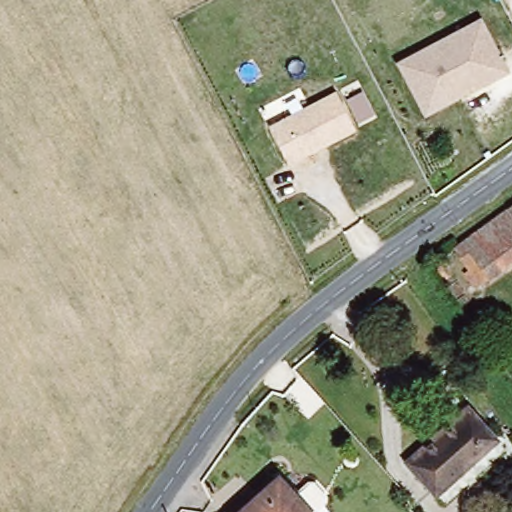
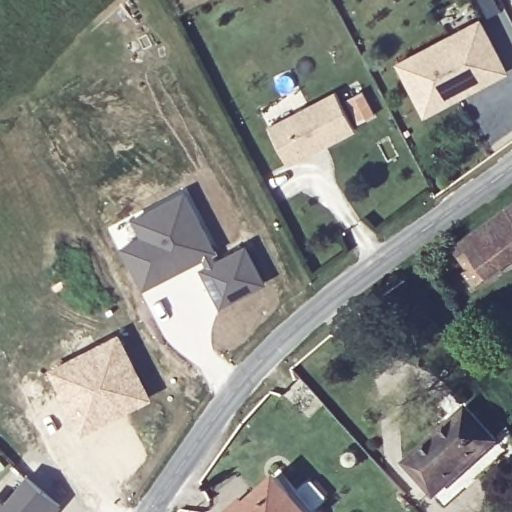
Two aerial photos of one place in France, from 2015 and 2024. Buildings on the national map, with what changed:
unchanged [(481,17),(510,73),(423,116),(395,60),(481,17)]
unchanged [(336,90),(357,130),(289,165),(269,124),(336,90)]
new [(136,236),(127,217),(186,186),(221,255),(207,262),(204,258),(144,289),(120,245),(136,236)]
unchanged [(512,207),(512,263),(478,287),(468,272),(473,269),(457,247),(512,207)]
new [(207,262),(221,255),(245,242),(266,281),(221,305),(199,267),(207,262)]
new [(119,330),(153,396),(82,433),(49,366),(119,330)]
unchanged [(405,460),(466,406),(495,438),(433,492),(405,460)]
new [(4,499),(26,472),(63,504),(56,512),(0,512),(0,496),(4,499)]
unchanged [(281,476),(298,495),(308,486),(313,486),(325,501),(325,506),(319,512),(240,512),(243,509),(281,476)]
unchanged [(234,499),(243,509),(240,512),(219,512),(234,499)]

